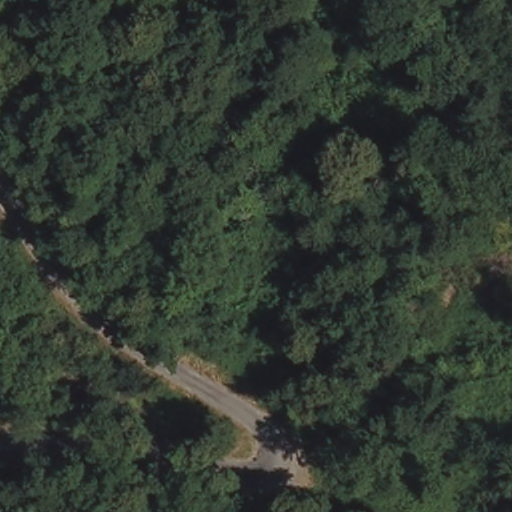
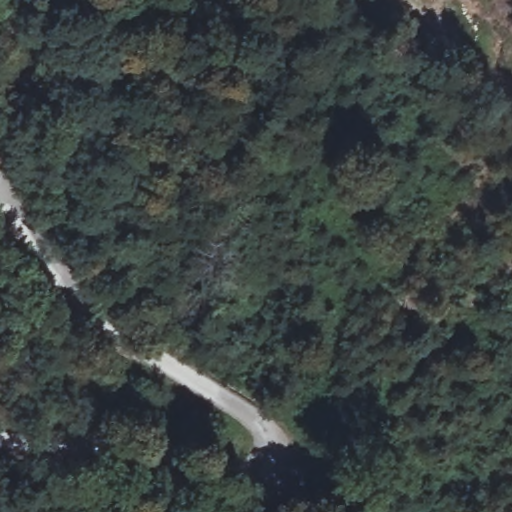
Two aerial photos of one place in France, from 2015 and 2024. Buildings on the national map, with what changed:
[]

